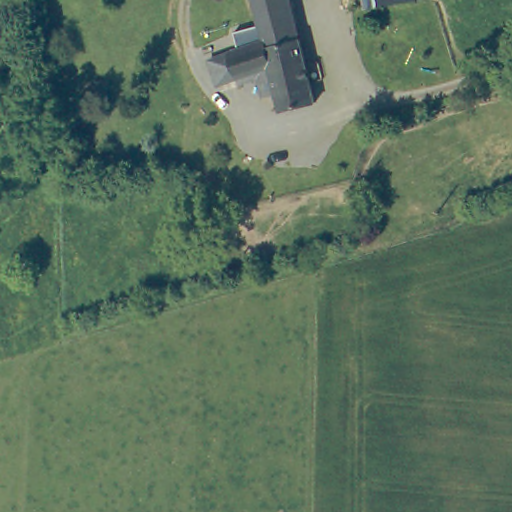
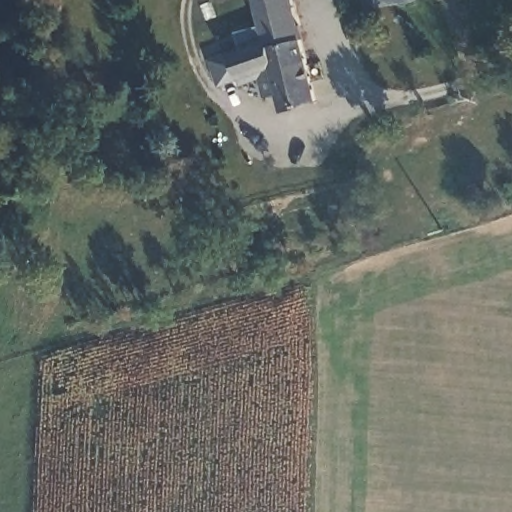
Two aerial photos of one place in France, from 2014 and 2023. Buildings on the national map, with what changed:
unchanged [(260,75),(241,82),(239,76),(220,83),(210,56),(230,49),(265,37),(252,0),(289,0),(321,92),(286,105),(280,89),(266,94),(260,75)]
unchanged [(375,4),(375,0),(405,0),(375,4)]

